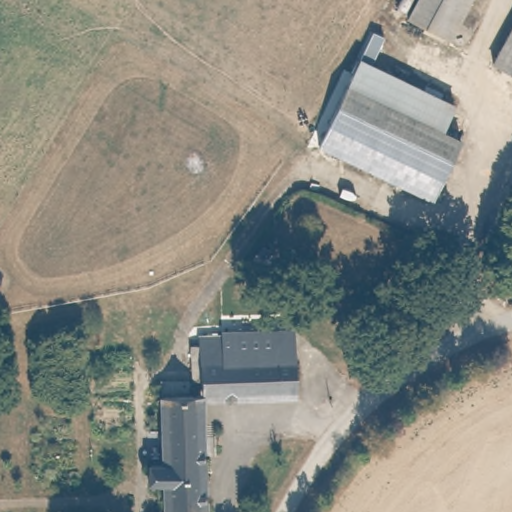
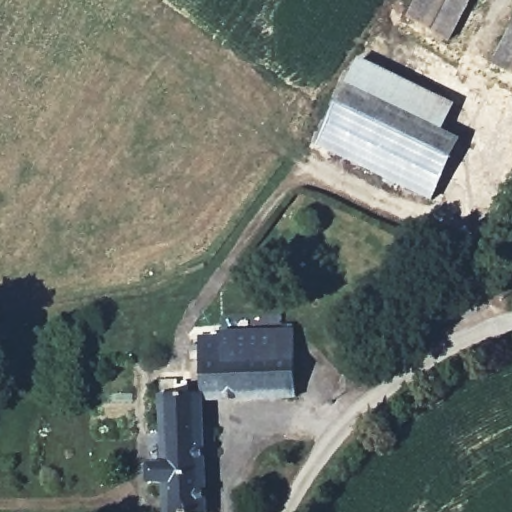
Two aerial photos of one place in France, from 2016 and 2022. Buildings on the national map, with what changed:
unchanged [(451,36),(409,14),(417,0),(471,0),(451,36)]
unchanged [(495,63),(512,31),(512,72),(495,63)]
unchanged [(440,129),(459,139),(430,197),(322,148),(362,61),(452,103),(440,129)]
unchanged [(286,333),(287,354),(301,354),(303,398),(256,400),(255,334),(286,333)]
unchanged [(256,400),(204,401),(204,393),(204,336),(255,334),(256,400)]
unchanged [(165,441),(164,395),(204,393),(204,401),(205,440),(165,441)]
unchanged [(166,475),(166,478),(151,479),(151,461),(166,460),(165,441),(205,440),(206,475),(166,475)]
unchanged [(166,475),(206,475),(207,512),(167,512),(166,478),(166,475)]

